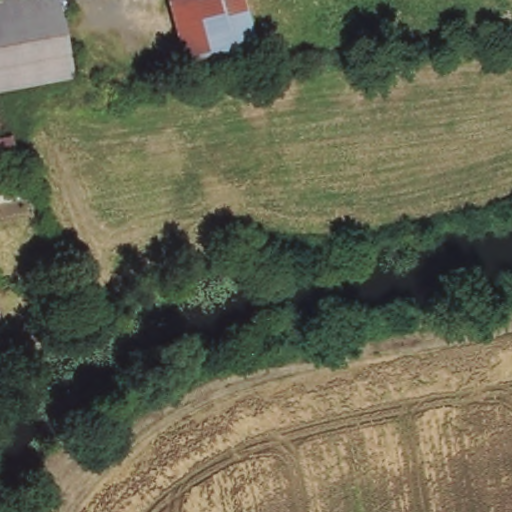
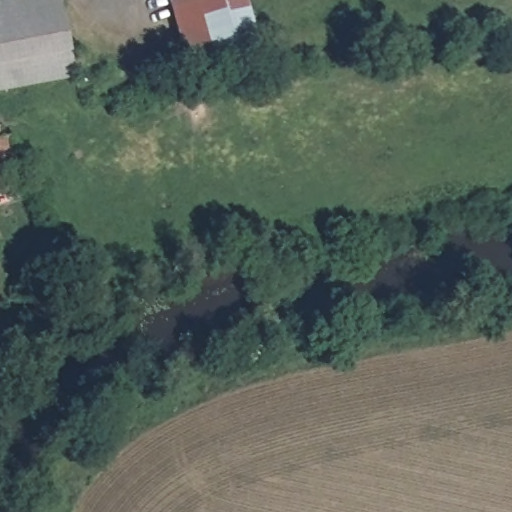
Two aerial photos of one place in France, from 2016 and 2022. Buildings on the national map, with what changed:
unchanged [(1,0),(16,0),(20,0),(46,0),(50,0),(58,2),(61,9),(75,79),(0,95),(0,0),(1,0)]
unchanged [(168,0),(238,0),(250,47),(185,65),(168,0)]
unchanged [(9,135),(16,155),(0,159),(0,135),(9,135)]

